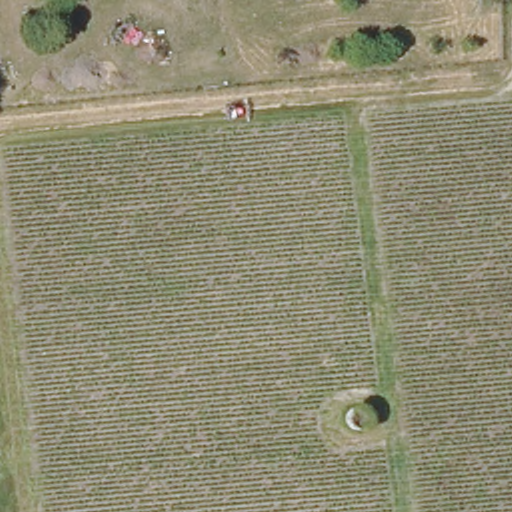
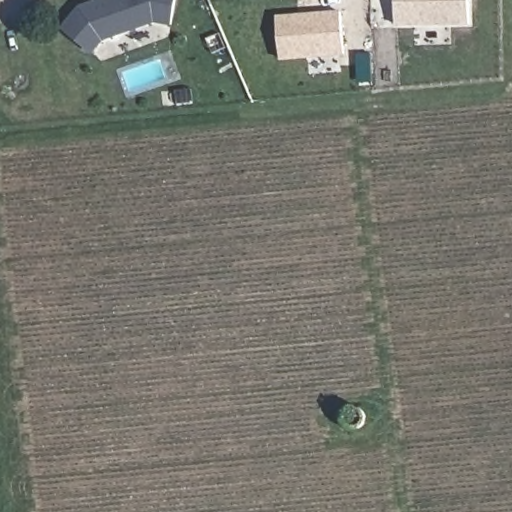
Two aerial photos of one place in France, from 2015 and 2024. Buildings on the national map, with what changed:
new [(102,0),(179,0),(173,26),(156,23),(104,39),(93,51),(65,25),(83,6),(102,0)]
new [(397,25),(397,0),(471,0),(471,24),(397,25)]
new [(281,63),(278,18),(341,13),(345,56),(281,63)]
unchanged [(343,414),(349,410),(356,410),(361,415),(361,421),(359,428),(353,430),(346,431),(342,426),(341,420),(343,414)]

